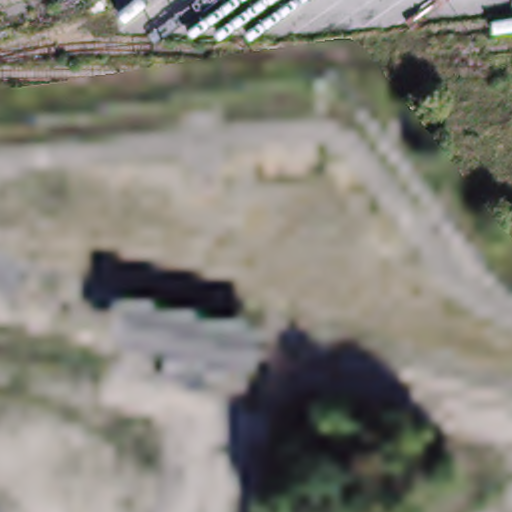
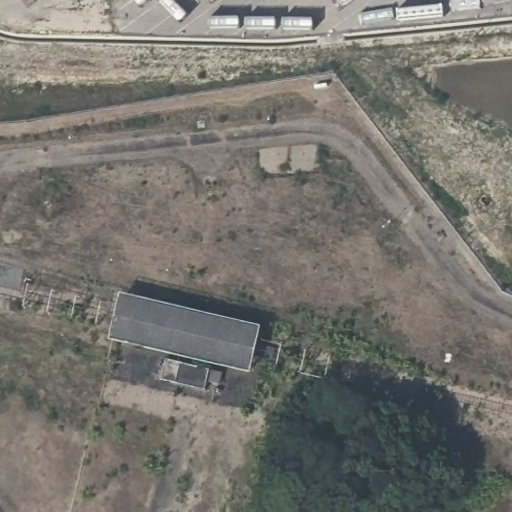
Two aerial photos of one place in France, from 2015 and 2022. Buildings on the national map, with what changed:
unchanged [(253,375),(111,342),(121,294),(262,327),(253,375)]
unchanged [(206,392),(161,382),(166,361),(210,372),(206,392)]

